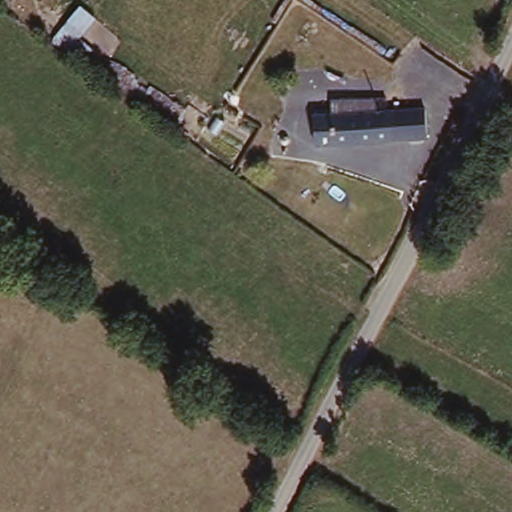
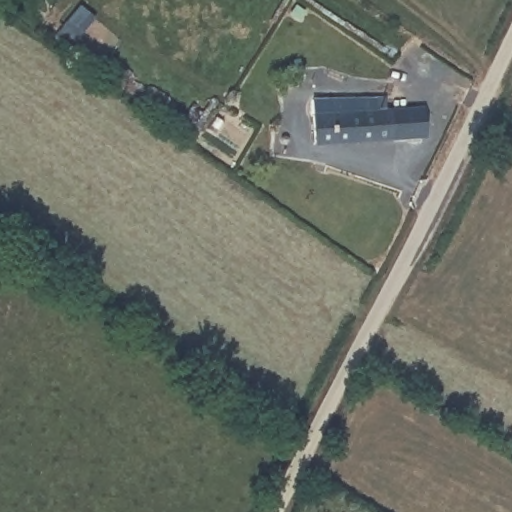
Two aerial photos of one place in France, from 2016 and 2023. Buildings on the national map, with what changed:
unchanged [(61,24),(93,47),(80,67),(46,44),(61,24)]
unchanged [(109,61),(173,105),(159,125),(95,81),(109,61)]
unchanged [(337,112),(335,101),(369,98),(379,97),(381,105),(370,106),(371,109),(419,105),(423,133),(312,144),(308,115),(337,112)]
unchanged [(185,126),(194,131),(216,99),(224,104),(195,147),(179,135),(185,126)]

